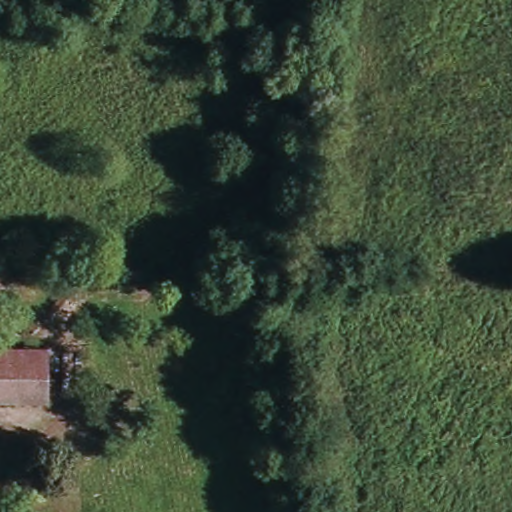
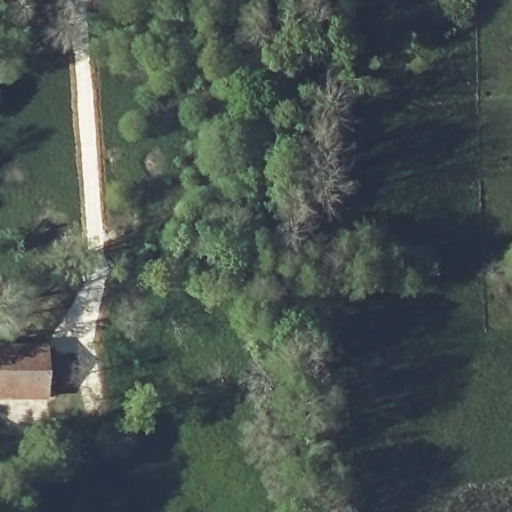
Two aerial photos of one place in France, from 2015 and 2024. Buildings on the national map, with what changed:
unchanged [(42,347),(43,398),(0,399),(0,347),(42,347)]

